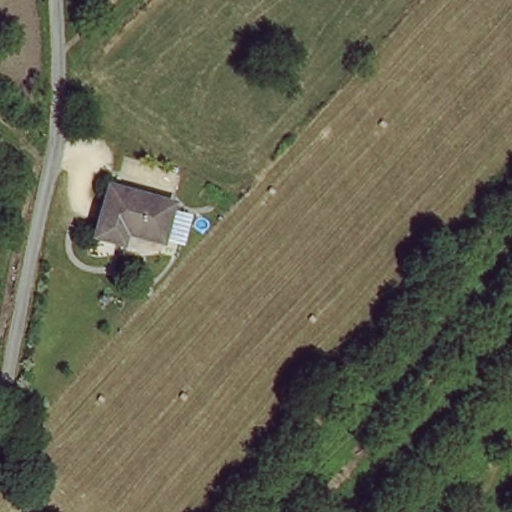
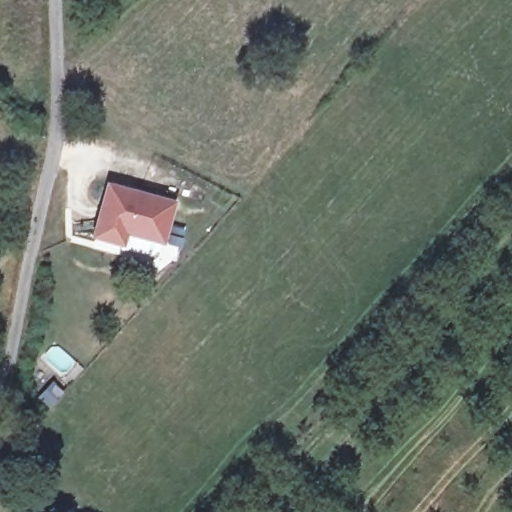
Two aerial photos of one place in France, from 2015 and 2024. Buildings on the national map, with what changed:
unchanged [(175,200),(165,240),(123,230),(121,239),(100,235),(108,202),(111,187),(119,188),(175,200)]

